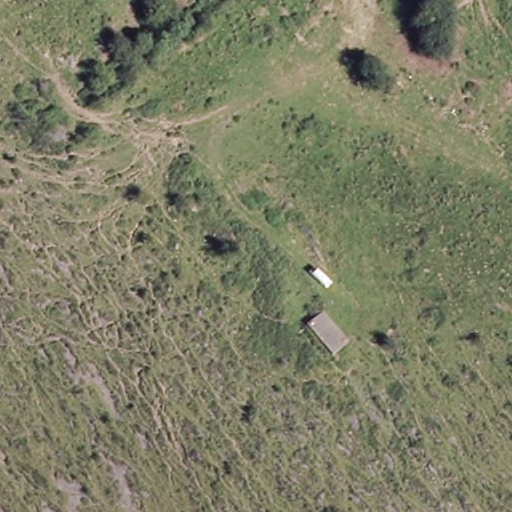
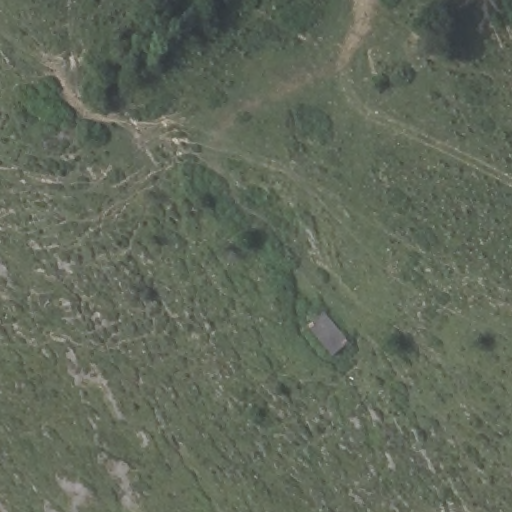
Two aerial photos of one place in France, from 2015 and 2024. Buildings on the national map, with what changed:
unchanged [(324,311),(352,341),(331,358),(305,326),(324,311)]

